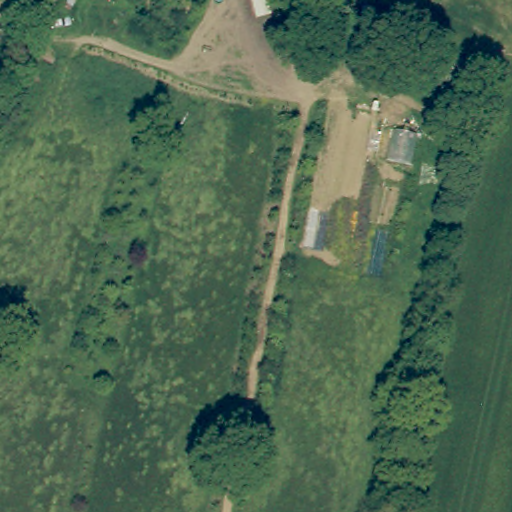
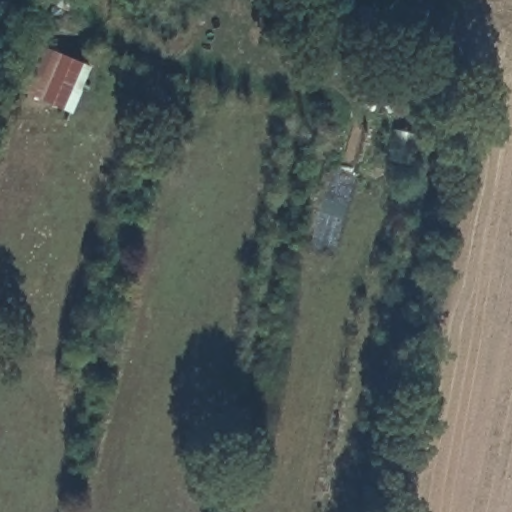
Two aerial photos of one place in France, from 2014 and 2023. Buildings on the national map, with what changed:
unchanged [(46,0),(72,0),(67,11),(46,1),(46,0)]
new [(70,114),(19,92),(41,46),(91,66),(70,114)]

